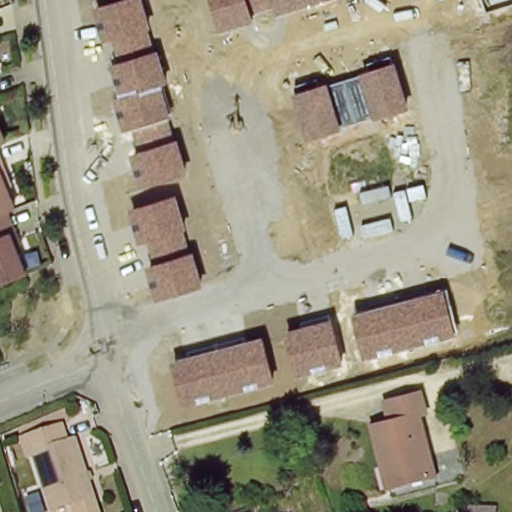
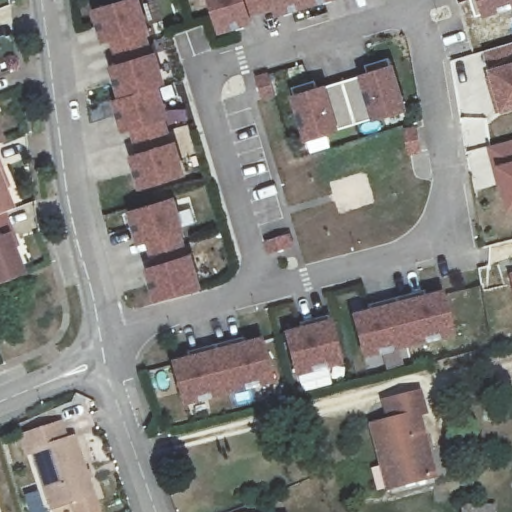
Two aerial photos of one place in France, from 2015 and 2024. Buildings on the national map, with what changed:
unchanged [(149,28),(146,29),(153,52),(157,51),(166,85),(161,87),(168,119),(166,119),(173,142),(177,141),(186,175),(139,189),(128,155),(136,153),(129,131),(121,132),(112,101),(118,99),(108,67),(118,63),(111,40),(101,43),(91,11),(127,0),(141,0),(149,28)]
unchanged [(276,17),(273,9),(251,16),(253,23),(219,33),(208,0),(334,0),(276,17)]
unchanged [(485,13),(481,0),(512,0),(512,5),(485,13)]
new [(489,75),(488,69),(484,52),(512,46),(512,110),(499,113),(496,114),(486,77),(489,75)]
unchanged [(407,110),(304,141),(291,95),(394,64),(407,110)]
unchanged [(0,142),(0,130),(4,140),(0,142)]
new [(512,140),(512,211),(509,211),(501,184),(497,187),(487,147),(512,140)]
unchanged [(0,164),(0,159),(1,163),(0,164)]
unchanged [(4,214),(0,216),(0,175),(12,211),(4,214)]
unchanged [(186,231),(181,232),(188,254),(193,254),(201,287),(154,302),(144,268),(152,265),(146,242),(138,244),(128,211),(174,197),(186,231)]
unchanged [(11,230),(8,234),(26,275),(0,285),(0,216),(4,214),(11,230)]
new [(512,274),(512,284),(509,274),(512,274)]
unchanged [(458,335),(363,359),(351,315),(446,291),(458,335)]
unchanged [(341,365),(296,376),(284,333),(330,321),(341,365)]
unchanged [(274,383),(182,406),(169,363),(261,339),(274,383)]
unchanged [(381,415),(396,412),(391,392),(424,385),(433,409),(424,411),(443,466),(428,471),(400,481),(398,472),(381,415)]
unchanged [(98,511),(96,512),(77,512),(70,494),(50,501),(28,444),(21,446),(17,434),(55,421),(60,433),(66,431),(88,488),(98,511)]
unchanged [(475,512),(467,512),(468,510),(475,512)]

